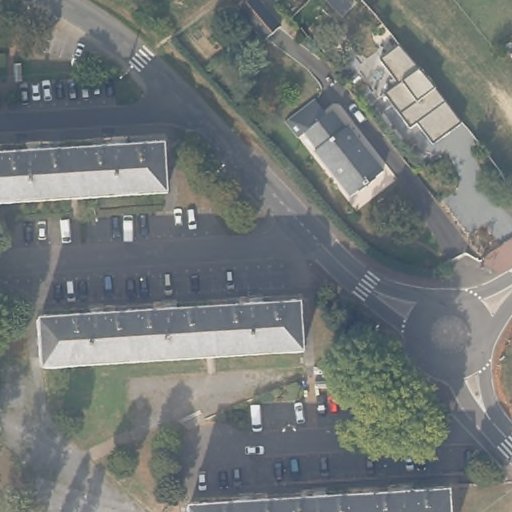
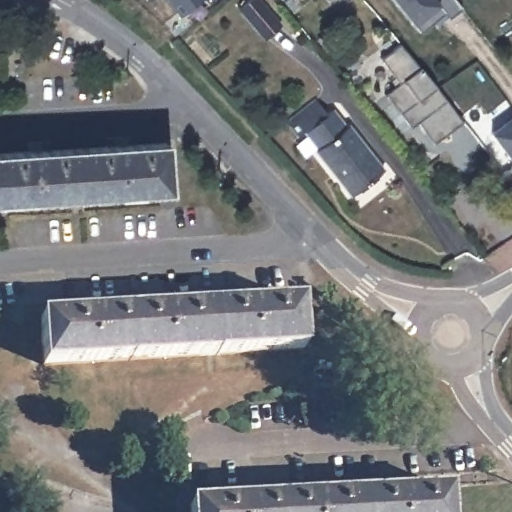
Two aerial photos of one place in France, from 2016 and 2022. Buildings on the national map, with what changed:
unchanged [(169,0),(192,0),(177,10),(169,0)]
unchanged [(258,35),(234,4),(239,0),(255,0),(274,22),(258,35)]
demolished [(289,12),(277,0),(304,0),(289,12)]
new [(447,17),(443,14),(421,31),(412,23),(393,0),(454,0),(460,7),(447,17)]
unchanged [(456,115),(427,139),(411,117),(405,122),(382,92),(378,89),(384,85),(392,79),(373,54),(395,37),(420,70),(456,115)]
unchanged [(356,130),(391,175),(358,201),(323,155),(325,153),(312,137),(306,141),(294,126),(310,115),(323,105),(335,120),(341,115),(353,131),(356,130)]
unchanged [(132,147),(167,145),(169,191),(0,201),(0,155),(32,154),(32,146),(46,145),(47,152),(120,148),(120,140),(132,140),(132,147)]
unchanged [(267,305),(302,302),(306,350),(46,366),(44,319),(95,315),(95,308),(107,307),(107,316),(168,311),(167,303),(181,302),(181,310),(252,305),(252,297),(267,297),(267,305)]
unchanged [(412,495),(447,493),(448,512),(187,512),(187,507),(240,505),(240,498),(251,497),(252,505),(312,500),(312,493),(327,492),(327,500),(400,495),(398,488),(411,488),(412,495)]

